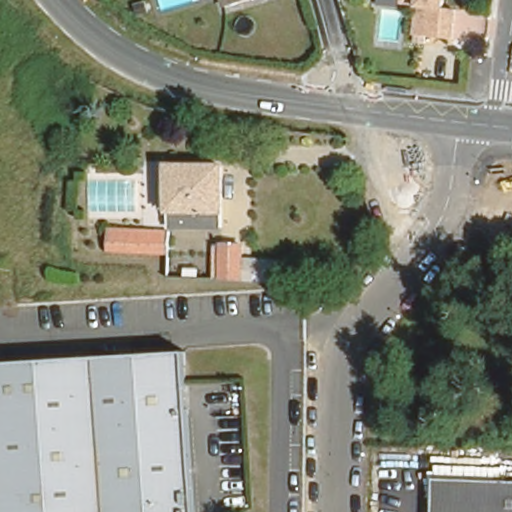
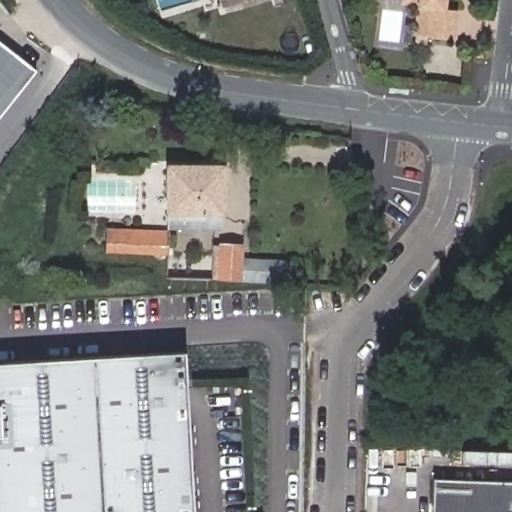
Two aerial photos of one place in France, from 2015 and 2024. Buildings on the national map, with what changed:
unchanged [(218,0),(247,0),(220,6),(218,0)]
unchanged [(405,0),(445,0),(445,7),(458,9),(455,38),(416,33),(419,3),(405,2),(405,0)]
new [(37,71),(0,117),(0,42),(37,71)]
unchanged [(168,170),(221,170),(222,217),(217,218),(217,232),(169,233),(168,170)]
unchanged [(152,258),(109,257),(109,234),(165,236),(165,258),(154,258),(152,258)]
unchanged [(282,288),(219,285),(220,250),(242,252),(242,264),(289,268),(288,289),(282,288)]
unchanged [(183,353),(195,512),(0,512),(0,368),(183,353)]
unchanged [(512,512),(430,512),(432,479),(512,482),(512,512)]

